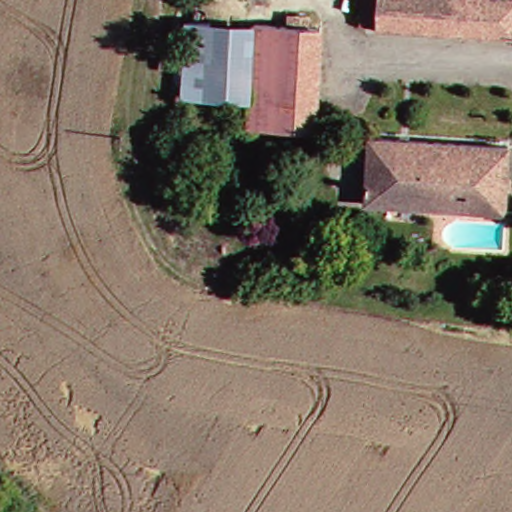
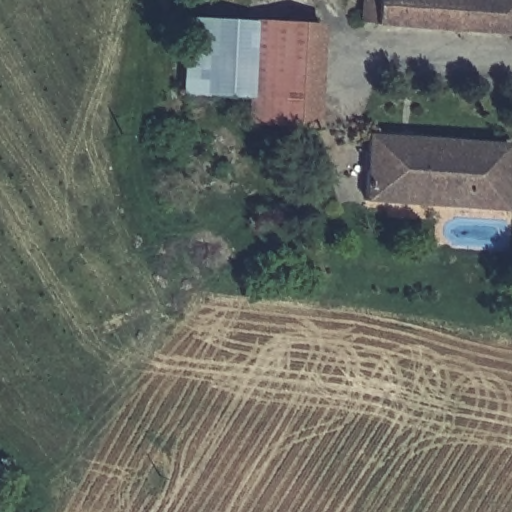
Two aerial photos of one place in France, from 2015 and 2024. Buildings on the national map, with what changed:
unchanged [(371,27),(371,22),(354,21),(356,0),(512,0),(512,6),(510,33),(371,27)]
unchanged [(242,128),(245,99),(177,96),(170,96),(171,50),(178,50),(179,21),(250,25),(316,28),(310,131),(242,128)]
unchanged [(473,180),(503,183),(501,214),(360,204),(365,137),(473,145),(473,180)]
unchanged [(504,148),(503,183),(473,180),(473,145),(504,148)]

